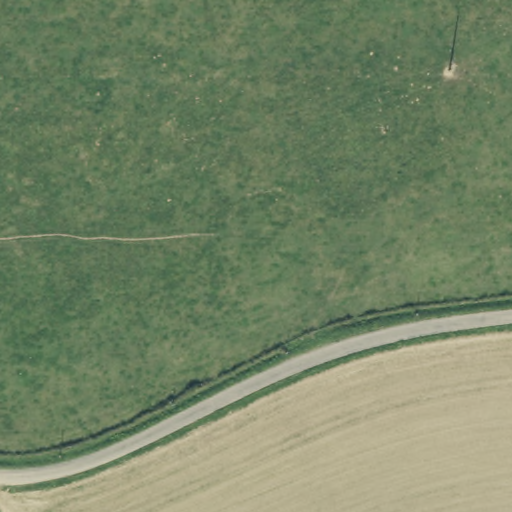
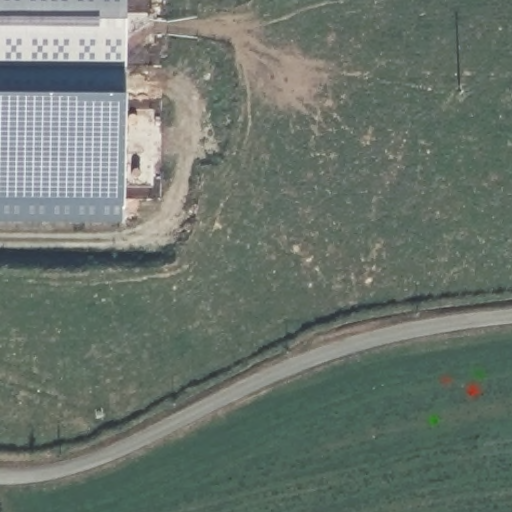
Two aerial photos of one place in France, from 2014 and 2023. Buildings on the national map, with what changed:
new [(0,222),(0,0),(125,0),(123,223),(0,222)]

